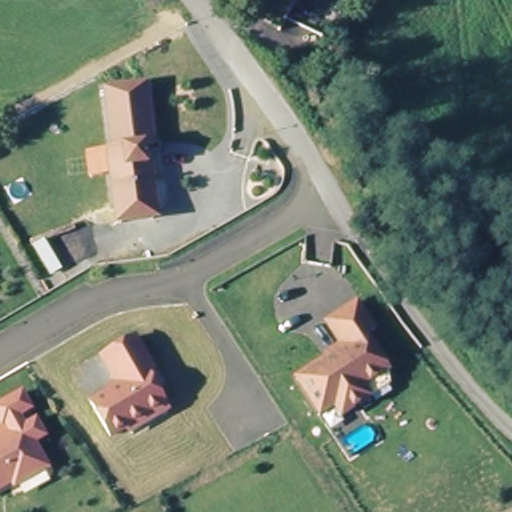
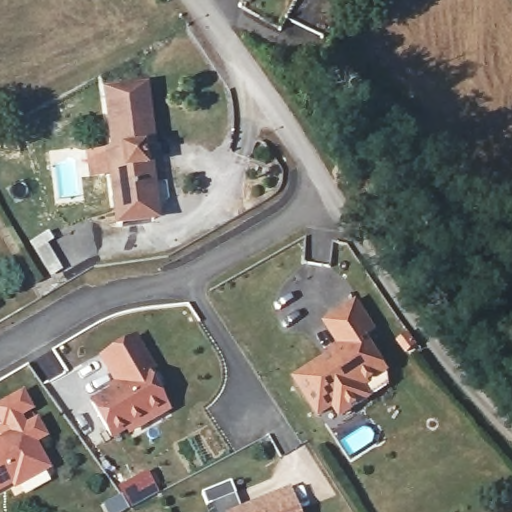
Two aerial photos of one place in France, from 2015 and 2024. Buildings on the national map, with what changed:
unchanged [(294,2),(291,0),(295,0),(294,2)]
unchanged [(116,226),(114,213),(109,155),(114,154),(108,94),(149,91),(153,150),(144,151),(146,172),(151,171),(154,201),(156,224),(116,226)]
unchanged [(372,396),(345,414),(336,405),(324,414),(298,380),(345,346),(327,322),(355,301),(374,328),(365,335),(390,366),(392,380),(372,396)]
unchanged [(135,433),(131,428),(116,439),(95,406),(122,388),(104,359),(138,337),(146,352),(156,368),(149,373),(173,409),(135,433)]
unchanged [(16,485),(13,480),(0,488),(0,438),(12,431),(7,421),(3,424),(0,419),(0,403),(23,391),(32,406),(20,415),(25,425),(35,418),(45,432),(33,439),(50,465),(16,485)]
new [(214,512),(211,503),(235,494),(239,506),(290,488),(299,512),(214,512)]

